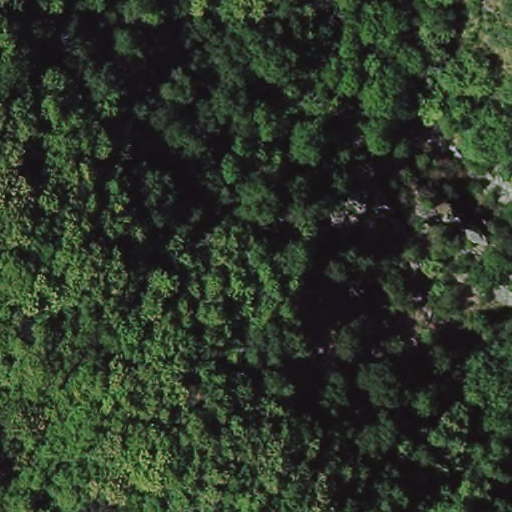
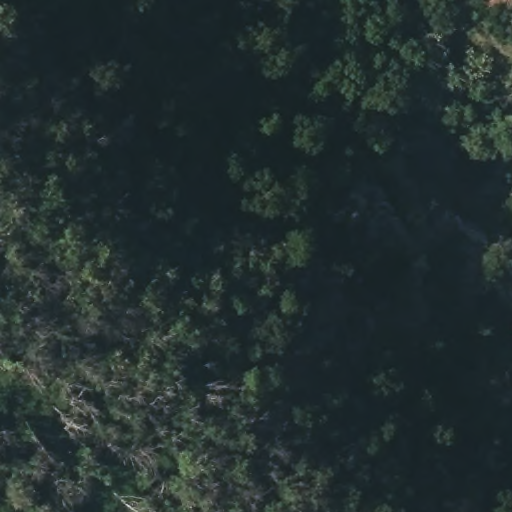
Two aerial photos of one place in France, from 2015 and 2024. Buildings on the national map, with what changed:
[]

